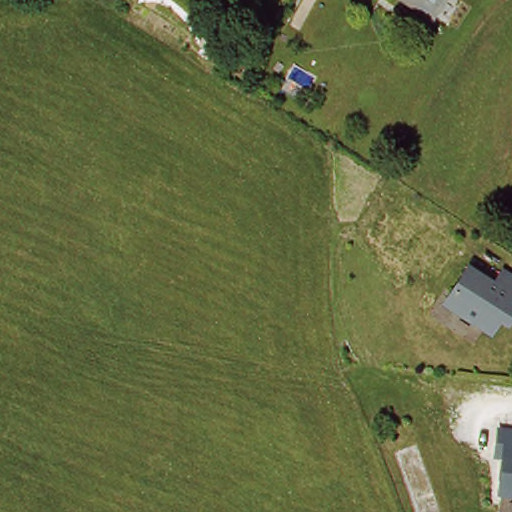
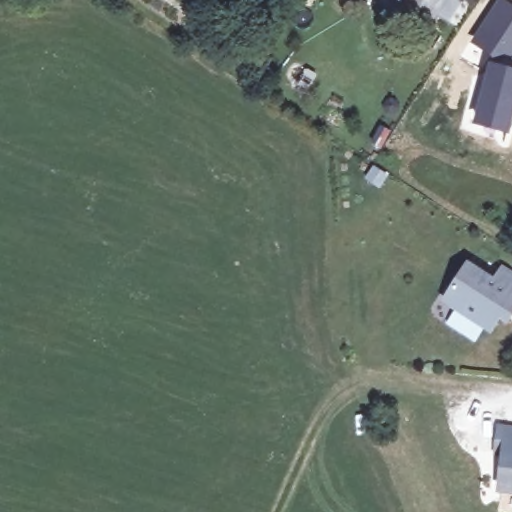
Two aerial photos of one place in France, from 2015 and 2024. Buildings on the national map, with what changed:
unchanged [(417,0),(450,0),(441,14),(417,0)]
new [(473,124),(489,59),(490,56),(469,41),(497,0),(509,0),(512,2),(512,123),(509,133),(473,124)]
unchanged [(488,330),(456,310),(452,294),(469,268),(495,280),(503,270),(512,276),(512,314),(509,320),(504,329),(493,324),(488,330)]
unchanged [(504,453),(494,452),(497,426),(512,428),(512,491),(499,489),(504,453)]

